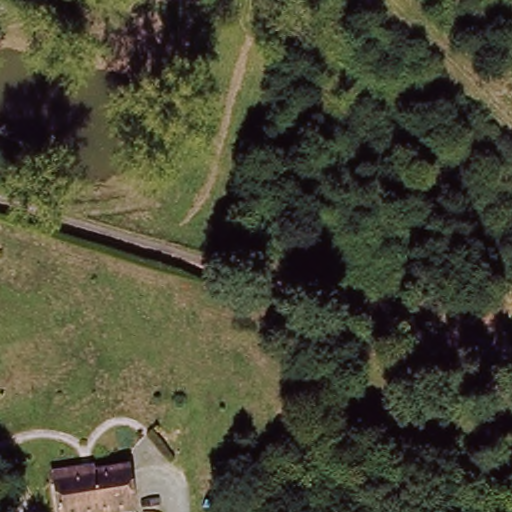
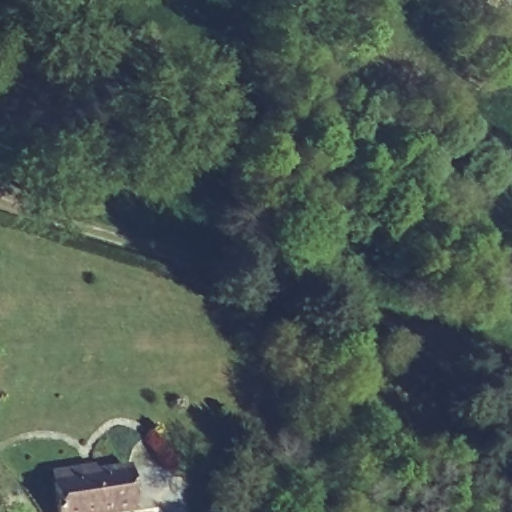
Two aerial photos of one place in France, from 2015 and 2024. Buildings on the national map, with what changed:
unchanged [(92,466),(92,474),(128,472),(131,478),(134,512),(58,512),(57,495),(56,484),(55,469),(92,466)]

